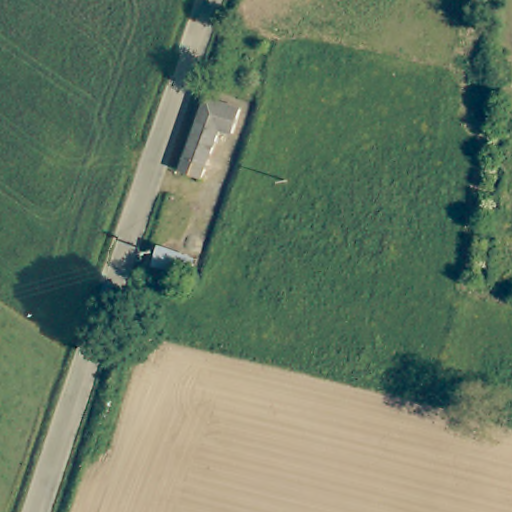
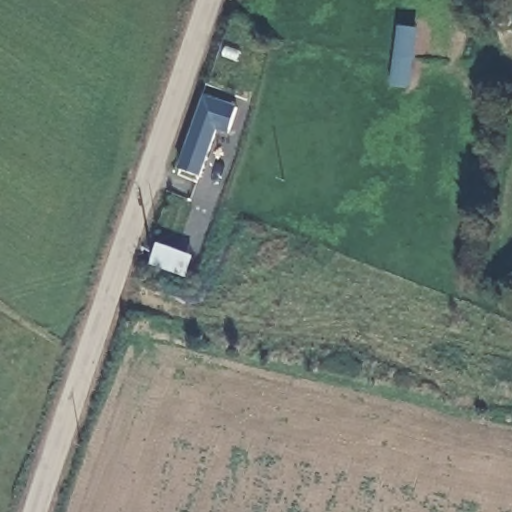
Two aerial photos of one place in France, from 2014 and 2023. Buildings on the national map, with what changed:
new [(420,30),(411,89),(392,86),(400,27),(420,30)]
unchanged [(238,108),(230,130),(219,126),(202,173),(181,166),(205,96),(238,108)]
unchanged [(180,274),(146,261),(149,256),(154,246),(186,258),(182,267),(180,274)]

